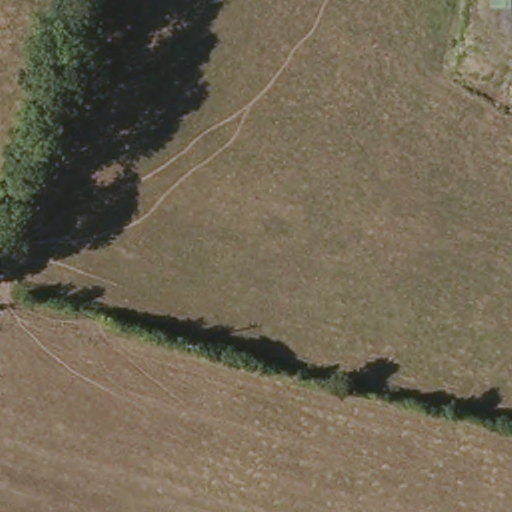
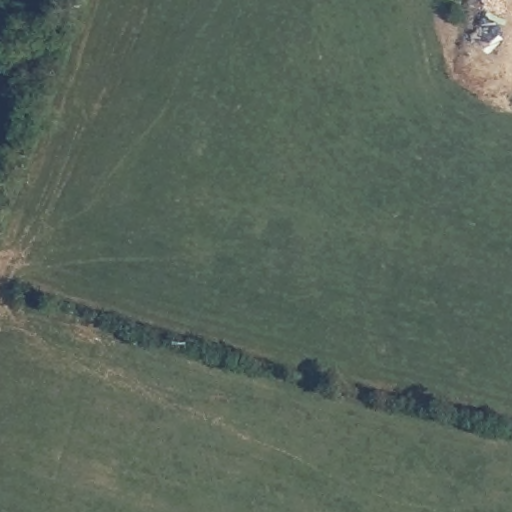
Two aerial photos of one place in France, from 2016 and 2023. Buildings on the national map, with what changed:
[]

